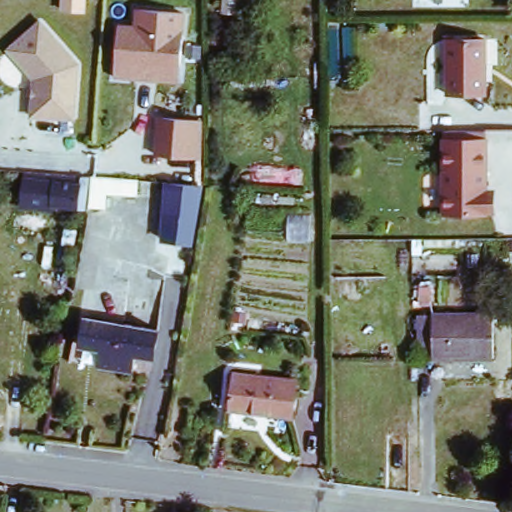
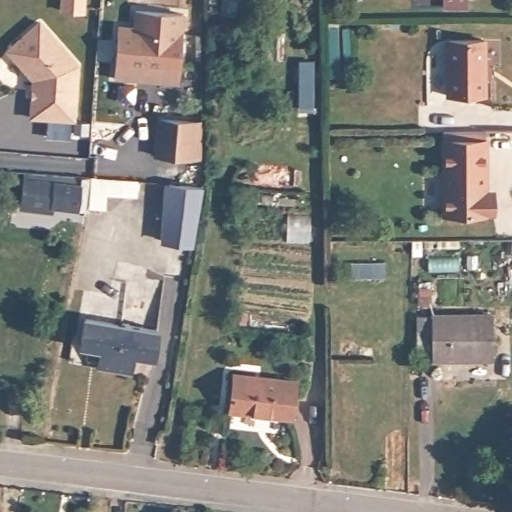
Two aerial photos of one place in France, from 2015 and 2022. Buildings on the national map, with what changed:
unchanged [(118,21),(132,22),(134,6),(185,9),(185,79),(114,76),(118,21)]
unchanged [(37,79),(8,46),(42,17),(81,57),(77,119),(33,116),(37,79)]
unchanged [(484,40),(483,93),(446,93),(447,39),(484,40)]
new [(301,61),(317,61),(317,108),(300,108),(301,61)]
unchanged [(157,115),(194,115),(193,155),(155,154),(157,115)]
unchanged [(488,140),(490,191),(497,190),(497,216),(442,217),(440,140),(488,140)]
unchanged [(82,214),(19,211),(20,175),(82,179),(82,214)]
unchanged [(200,183),(192,237),(163,233),(165,191),(167,178),(200,183)]
unchanged [(416,314),(492,313),(492,355),(417,356),(416,314)]
unchanged [(82,338),(85,318),(157,330),(150,360),(132,356),(130,368),(96,362),(98,350),(80,347),(82,338)]
unchanged [(233,371),(290,379),(287,415),(227,407),(233,371)]

